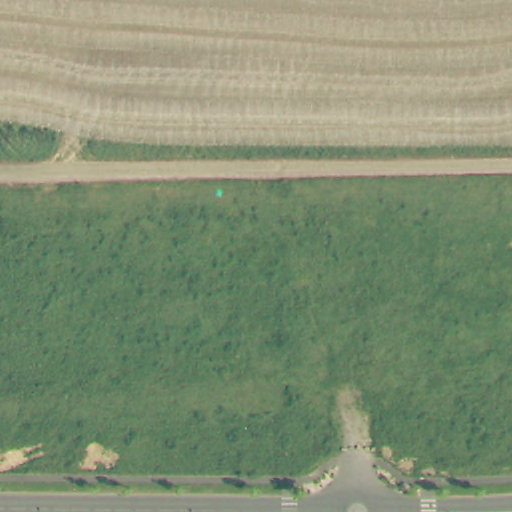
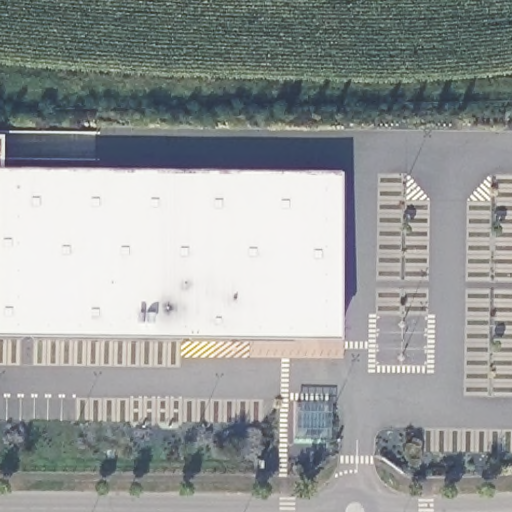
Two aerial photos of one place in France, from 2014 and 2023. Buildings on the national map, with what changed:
new [(339,172),(333,339),(0,335),(0,137),(1,168),(339,172)]
new [(295,406),(326,407),(325,441),(294,440),(295,406)]

